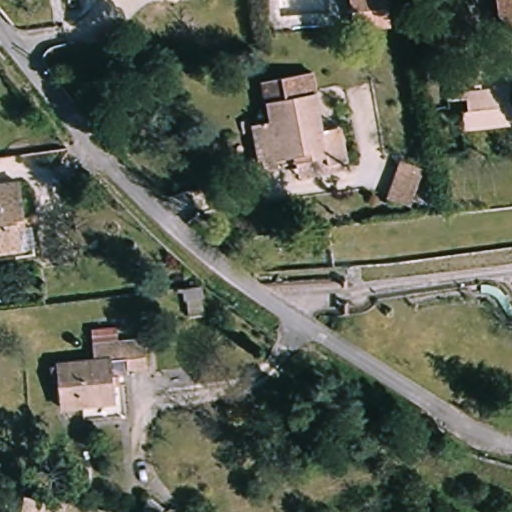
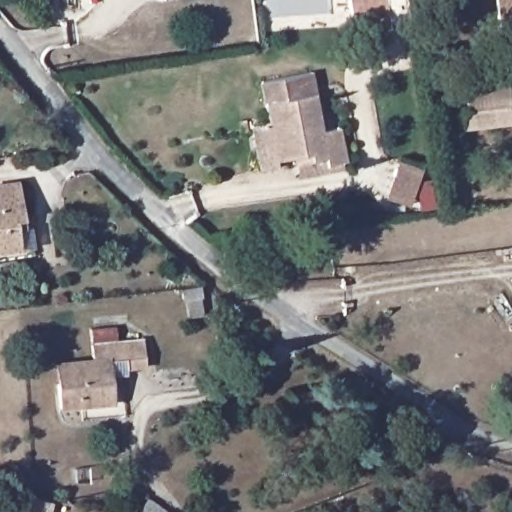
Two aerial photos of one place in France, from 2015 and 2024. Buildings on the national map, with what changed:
unchanged [(343,0),(384,0),(385,31),(347,33),(343,0)]
unchanged [(501,34),(497,0),(512,0),(512,32),(501,34)]
unchanged [(311,72),(315,102),(267,109),(262,79),(311,72)]
unchanged [(477,105),(475,89),(500,86),(503,106),(512,105),(512,121),(473,125),(470,106),(477,105)]
unchanged [(261,129),(270,126),(267,109),(315,102),(320,138),(338,136),(343,170),(325,174),(325,165),(303,168),(302,164),(276,167),(266,169),(261,129)]
unchanged [(393,159),(424,169),(405,209),(379,198),(393,159)]
unchanged [(18,216),(8,217),(14,252),(0,254),(0,182),(13,180),(18,216)]
unchanged [(89,346),(135,337),(140,363),(124,365),(123,357),(109,359),(116,401),(60,410),(54,368),(91,360),(89,346)]
unchanged [(22,512),(25,495),(56,503),(55,512),(22,512)]

